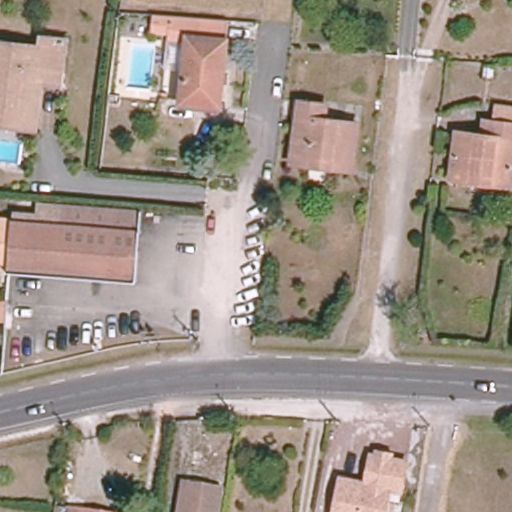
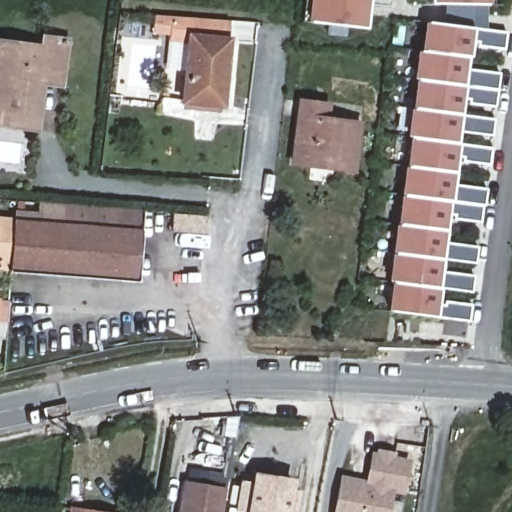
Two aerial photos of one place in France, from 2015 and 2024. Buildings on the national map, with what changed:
new [(306,21),(309,0),(369,0),(365,29),(306,21)]
new [(430,0),(491,0),(491,3),(430,2),(430,0)]
unchanged [(200,18),(199,32),(189,31),(188,42),(167,42),(167,35),(149,34),(152,13),(200,18)]
unchanged [(226,35),(229,35),(222,102),(183,97),(188,42),(189,31),(199,32),(200,18),(227,21),(226,35)]
new [(506,33),(504,49),(471,44),(469,57),(467,57),(465,67),(500,72),(495,106),(462,102),(460,114),(494,118),(492,136),(458,131),(456,142),(491,147),(489,165),(455,161),(453,184),(487,188),(484,206),(481,206),(479,223),(446,218),(443,242),(477,246),(475,263),(441,258),(440,270),(473,274),(471,292),(439,288),(438,299),(471,303),(469,321),(435,317),(386,311),(390,281),(387,281),(398,194),(401,194),(409,136),(406,136),(418,50),(421,51),(425,22),(473,27),(506,33)]
unchanged [(64,48),(60,87),(40,85),(36,119),(8,116),(6,128),(0,127),(0,50),(44,55),(45,46),(64,48)]
demolished [(489,184),(489,179),(469,176),(468,181),(449,179),(454,135),(479,137),(481,122),(492,122),(494,107),(512,110),(512,151),(508,186),(489,184)]
unchanged [(354,130),(348,175),(329,172),(330,167),(308,165),(308,169),(289,167),(297,108),(322,111),(320,126),(354,130)]
unchanged [(61,205),(88,207),(124,210),(136,211),(134,231),(60,225),(61,205)]
new [(171,215),(204,217),(202,232),(169,230),(171,215)]
unchanged [(0,269),(0,220),(10,221),(6,269),(0,269)]
unchanged [(134,231),(131,279),(6,269),(10,221),(60,225),(134,231)]
unchanged [(338,474),(366,480),(370,451),(374,452),(375,449),(394,452),(394,457),(409,460),(404,492),(391,491),(388,512),(332,512),(338,474)]
new [(249,512),(236,510),(241,482),(254,483),(256,475),(292,481),(290,491),(300,493),(297,512),(249,512)]
unchanged [(221,491),(220,501),(218,512),(176,512),(181,484),(221,491)]
unchanged [(67,510),(81,512),(67,512),(67,510)]

